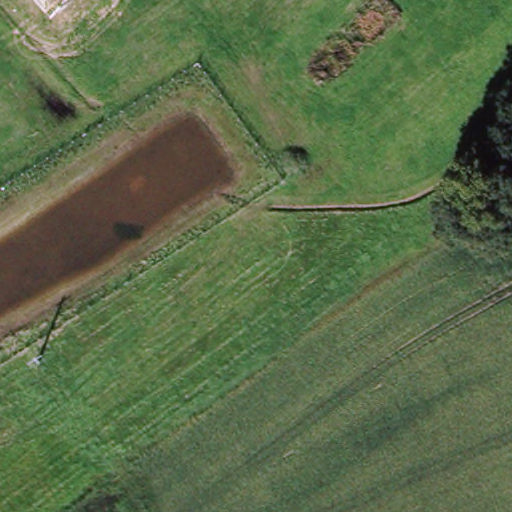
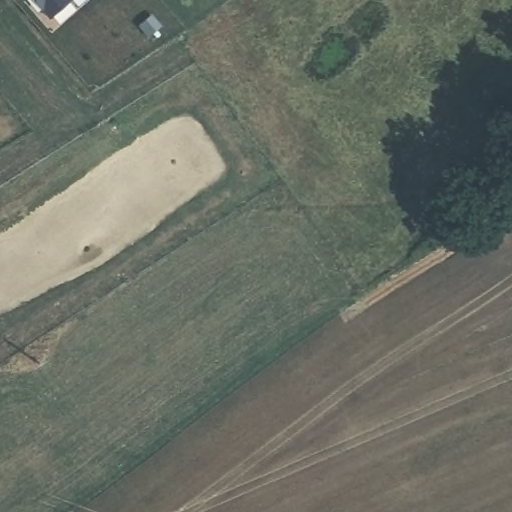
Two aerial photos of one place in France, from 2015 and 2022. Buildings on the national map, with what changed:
unchanged [(33,0),(71,0),(49,19),(33,0)]

